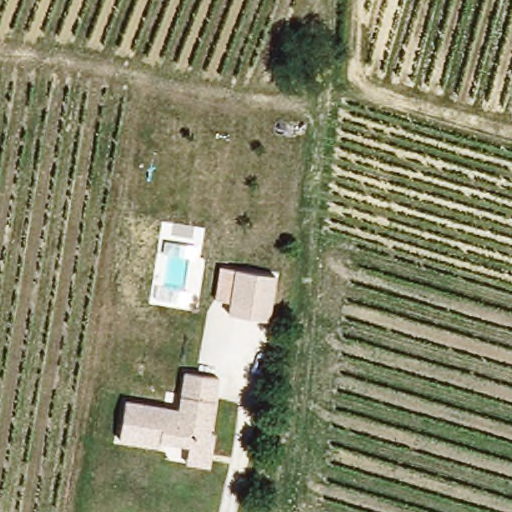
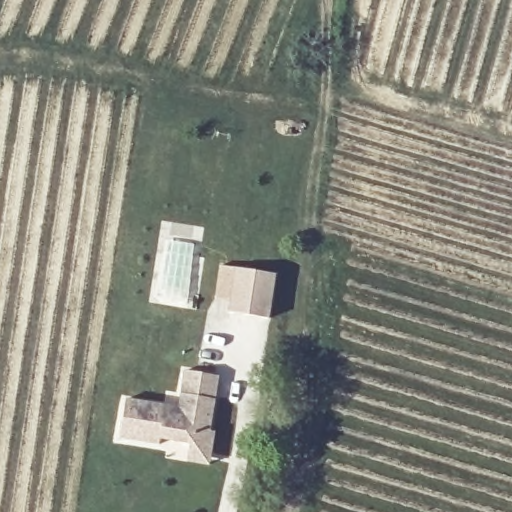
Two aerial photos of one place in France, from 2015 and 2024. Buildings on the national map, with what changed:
unchanged [(234,266),(276,272),(269,318),(227,312),(234,266)]
unchanged [(185,447),(155,441),(154,449),(114,441),(122,401),(172,411),(179,373),(213,379),(202,434),(211,435),(205,468),(181,465),(185,447)]

